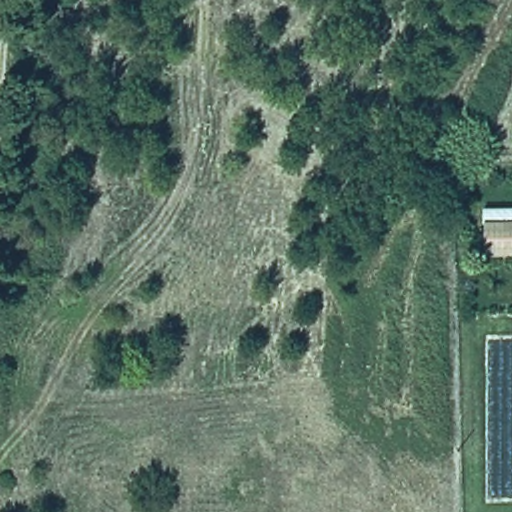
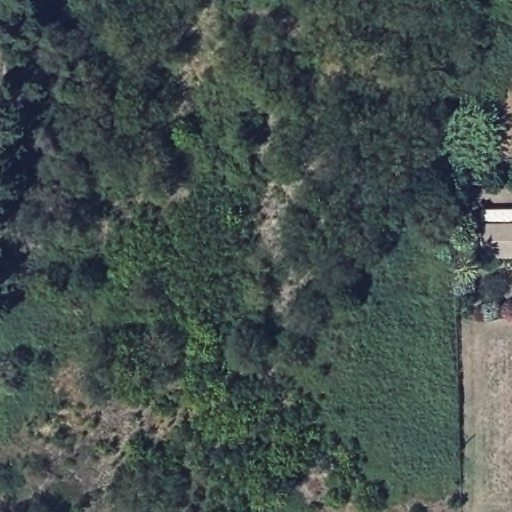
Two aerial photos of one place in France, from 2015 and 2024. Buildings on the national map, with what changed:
unchanged [(480,215),(512,214),(512,260),(480,260),(480,215)]

